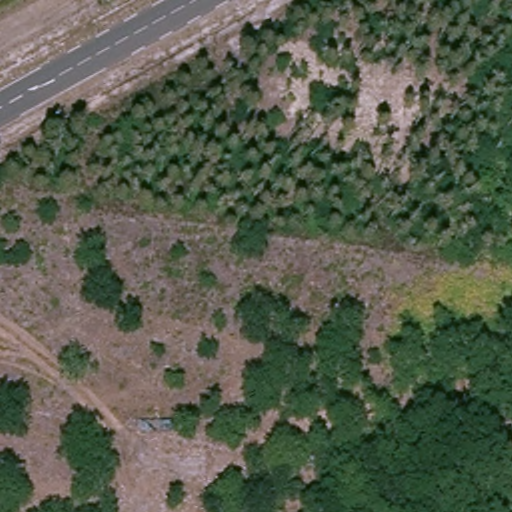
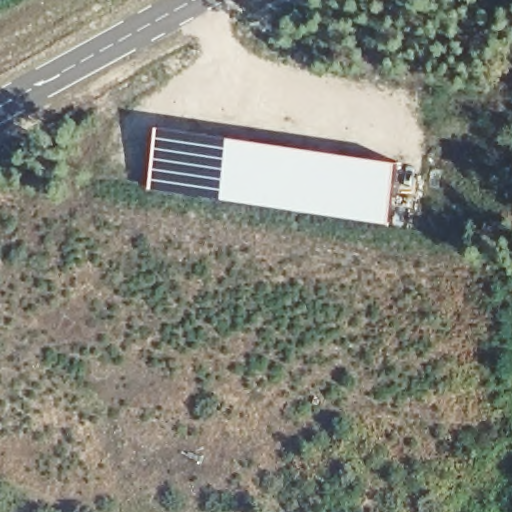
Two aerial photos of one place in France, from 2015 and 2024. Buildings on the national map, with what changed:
new [(159,125),(229,135),(221,193),(171,185),(170,190),(151,188),(159,125)]
new [(221,193),(229,135),(398,161),(389,225),(220,200),(221,193)]

